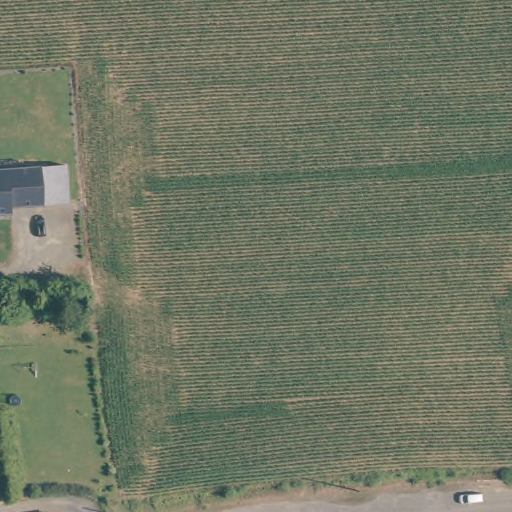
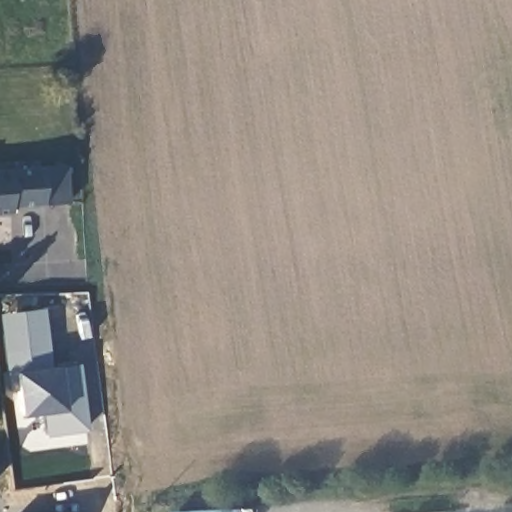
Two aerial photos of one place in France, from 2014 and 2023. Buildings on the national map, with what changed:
unchanged [(67,166),(69,203),(43,205),(11,207),(11,214),(0,215),(0,170),(40,167),(67,166)]
new [(53,364),(75,361),(84,426),(44,432),(41,409),(19,412),(16,388),(8,389),(0,332),(0,312),(38,306),(41,326),(48,370),(54,370),(53,364)]

